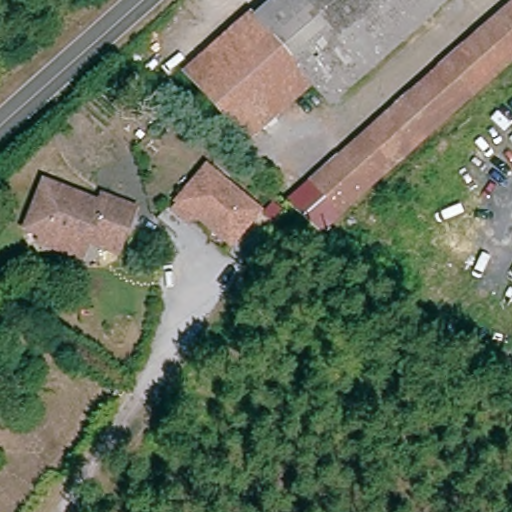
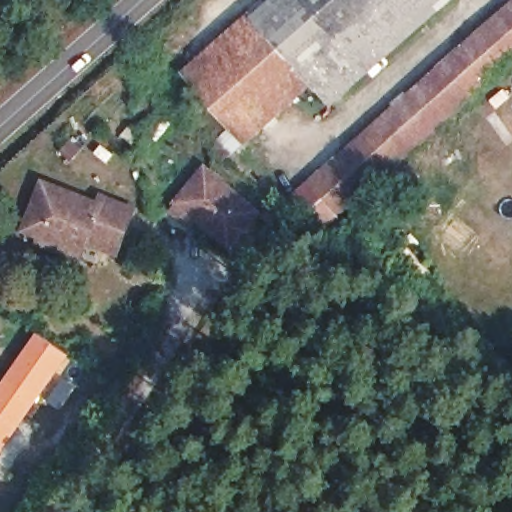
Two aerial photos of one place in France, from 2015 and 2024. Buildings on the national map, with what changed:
unchanged [(247,20),(255,27),(286,0),(449,0),(325,108),(308,89),(240,148),(180,79),(247,20)]
unchanged [(512,68),(320,236),(305,224),(288,210),(512,15),(512,68)]
unchanged [(249,218),(227,244),(200,218),(186,233),(169,219),(181,204),(178,201),(200,175),(249,218)]
unchanged [(82,255),(40,239),(42,232),(28,226),(42,185),(97,203),(100,193),(138,206),(121,255),(88,243),(82,255)]
new [(38,332),(70,354),(0,455),(0,387),(38,332)]

